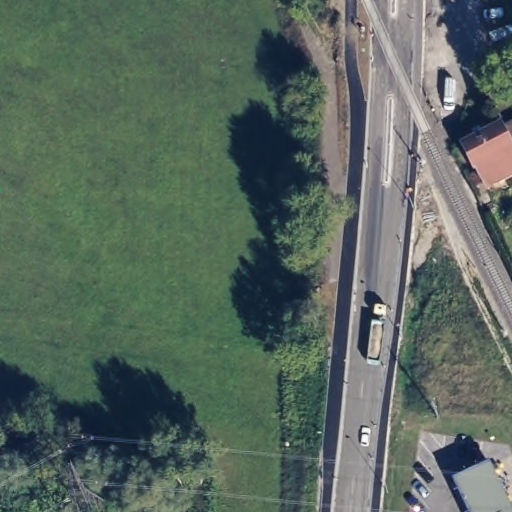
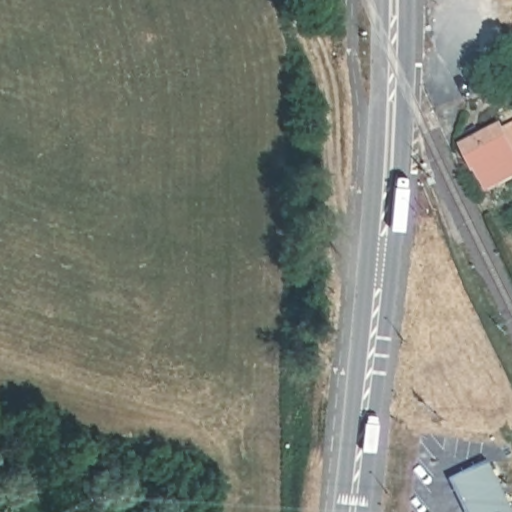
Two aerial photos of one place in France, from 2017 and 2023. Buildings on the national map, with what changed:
unchanged [(466,149),(502,130),(503,132),(512,127),(512,177),(489,189),(480,171),(477,172),(466,149)]
unchanged [(459,481),(495,464),(512,498),(512,512),(474,512),(459,481)]

